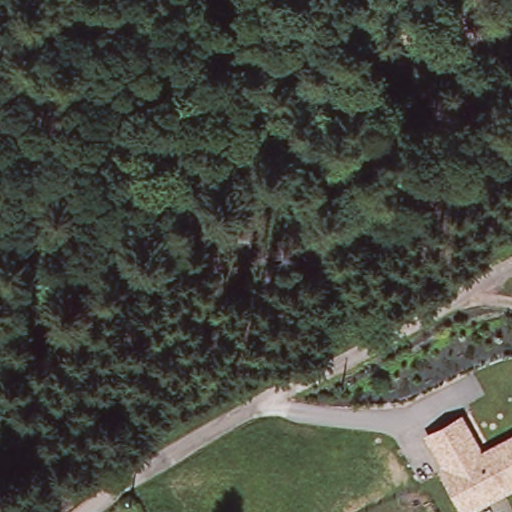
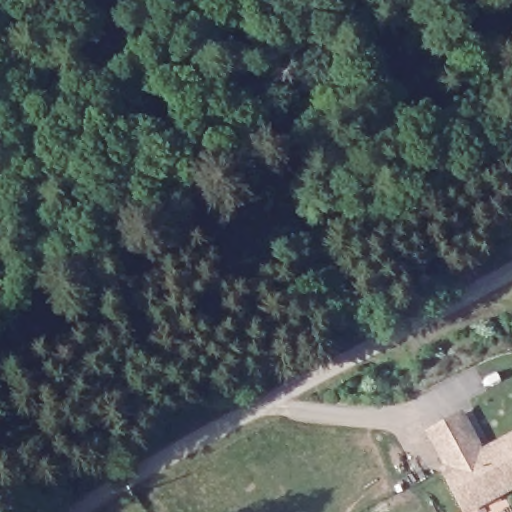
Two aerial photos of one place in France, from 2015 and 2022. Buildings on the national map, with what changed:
unchanged [(475,512),(470,512),(447,473),(451,471),(430,437),(462,418),(485,456),(494,451),(512,440),(512,491),(475,512)]

